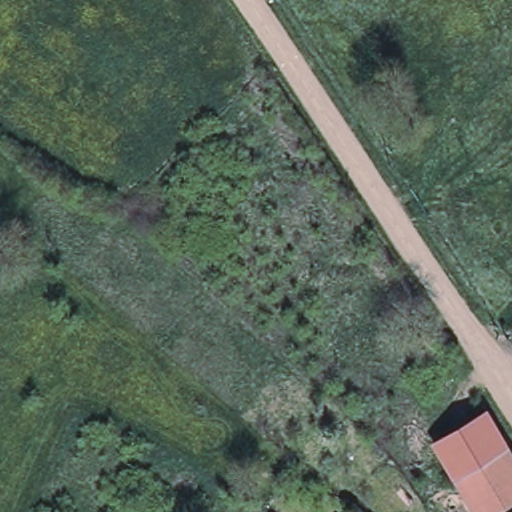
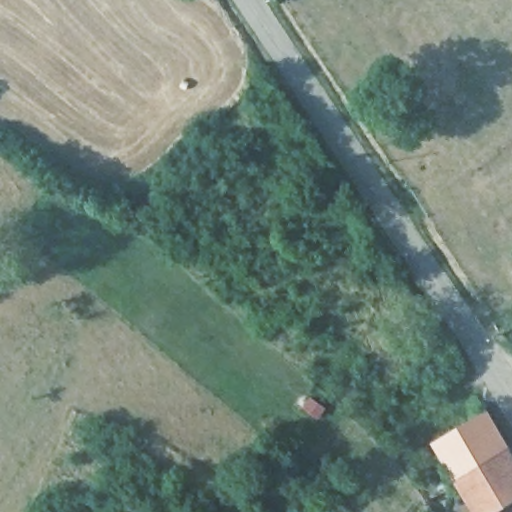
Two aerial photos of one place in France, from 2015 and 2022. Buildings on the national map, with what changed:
unchanged [(423,425),(476,392),(508,445),(457,478),(423,425)]
unchanged [(508,445),(512,451),(512,500),(492,512),(478,512),(457,478),(508,445)]

